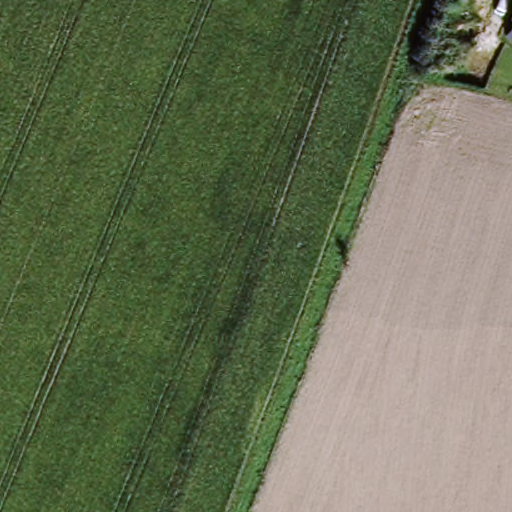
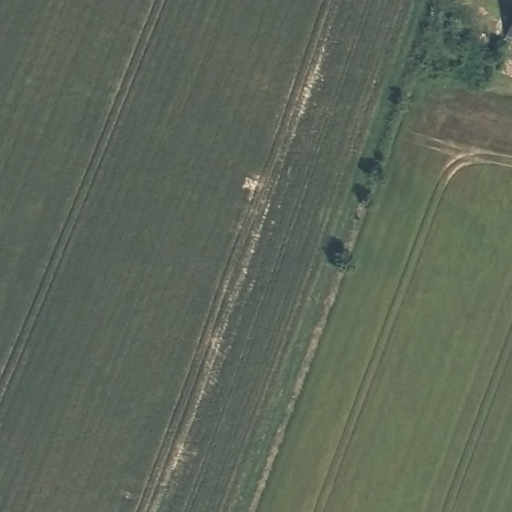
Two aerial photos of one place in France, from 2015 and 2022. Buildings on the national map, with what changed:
unchanged [(507,39),(512,28),(512,41),(507,39)]

